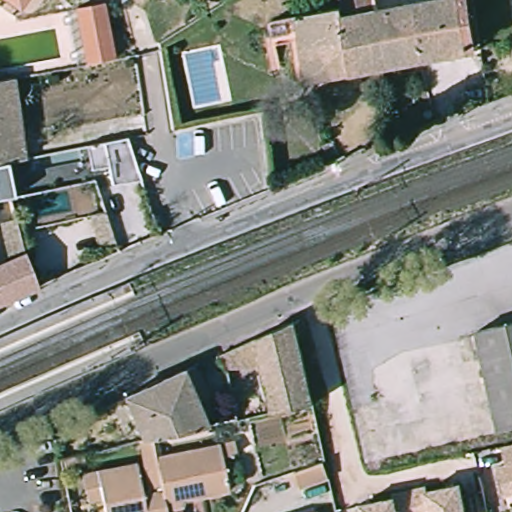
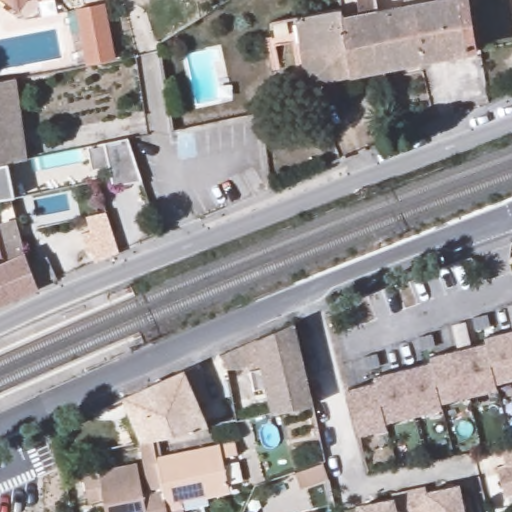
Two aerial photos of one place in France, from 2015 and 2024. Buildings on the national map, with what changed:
unchanged [(7,0),(23,0),(18,7),(7,0)]
unchanged [(291,46),(274,50),(269,25),(341,11),(338,0),(375,0),(386,71),(308,86),(299,88),(291,46)]
unchanged [(468,55),(386,71),(375,0),(466,0),(476,54),(468,55)]
unchanged [(77,9),(101,4),(111,60),(88,64),(77,9)]
unchanged [(20,159),(0,163),(0,80),(8,78),(20,159)]
unchanged [(125,139),(138,183),(109,191),(96,145),(125,139)]
new [(89,234),(85,220),(103,214),(114,253),(91,263),(88,251),(80,253),(76,238),(89,234)]
unchanged [(28,276),(33,288),(0,303),(0,265),(20,257),(28,276)]
unchanged [(296,328),(314,411),(275,419),(264,373),(228,373),(221,361),(296,328)]
demolished [(512,329),(512,435),(500,438),(477,337),(512,329)]
new [(492,381),(494,390),(438,400),(439,407),(383,421),(384,429),(357,435),(350,388),(375,383),(376,375),(428,365),(429,356),(484,344),(484,338),(512,332),(512,377),(492,381)]
unchanged [(141,452),(120,408),(180,381),(204,438),(149,450),(141,452)]
unchanged [(505,496),(498,469),(507,466),(502,448),(512,446),(512,495),(505,496)]
unchanged [(162,512),(98,512),(97,508),(83,511),(78,486),(133,475),(138,502),(146,501),(136,452),(141,452),(149,450),(153,470),(162,512)]
unchanged [(233,463),(218,466),(226,501),(178,511),(178,512),(162,512),(153,470),(231,453),(233,463)]
unchanged [(324,463),(329,479),(301,489),(296,473),(324,463)]
unchanged [(83,476),(61,480),(58,468),(80,464),(83,476)]
unchanged [(427,489),(428,491),(461,484),(466,512),(415,512),(411,492),(410,490),(427,486),(427,489)]
unchanged [(394,496),(394,494),(410,490),(411,492),(415,512),(363,512),(361,505),(394,498),(394,496)]

